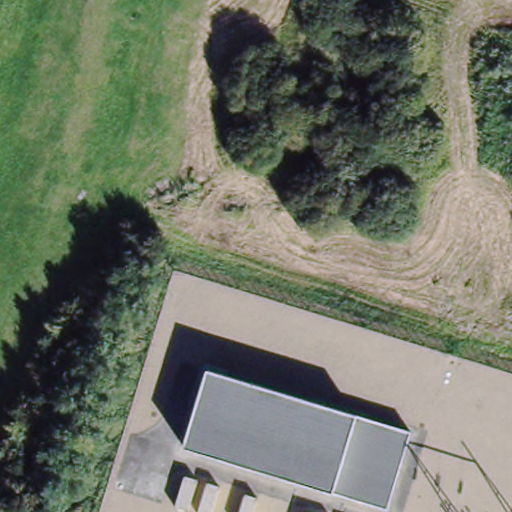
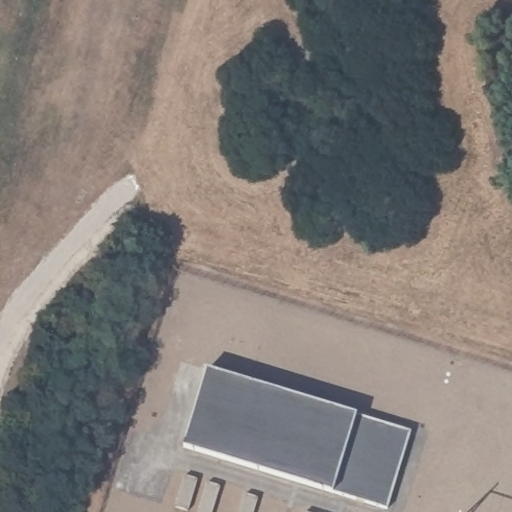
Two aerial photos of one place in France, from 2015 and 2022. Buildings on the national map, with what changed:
unchanged [(409,430),(385,508),(180,446),(205,367),(409,430)]
unchanged [(195,479),(185,509),(173,505),(181,475),(195,479)]
unchanged [(204,481),(217,485),(210,512),(196,512),(204,481)]
unchanged [(242,493),(256,497),(251,512),(237,512),(242,493)]

